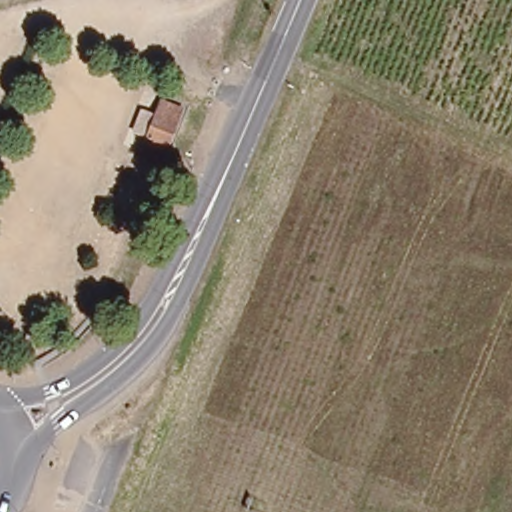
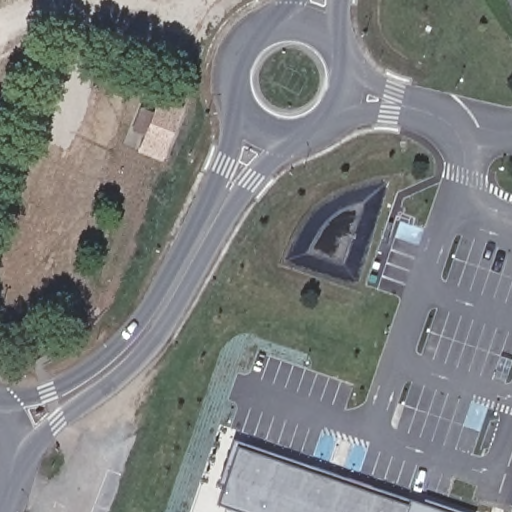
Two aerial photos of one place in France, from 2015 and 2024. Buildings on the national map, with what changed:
new [(163,161),(138,152),(144,136),(131,131),(141,106),(153,111),(158,99),(183,109),(163,161)]
demolished [(167,149),(149,143),(158,118),(175,125),(167,149)]
new [(223,485),(219,484),(234,440),(411,501),(422,504),(424,499),(462,512),(235,512),(216,505),(223,485)]

